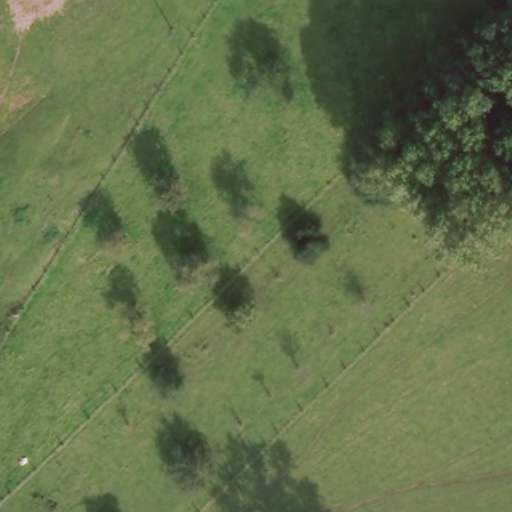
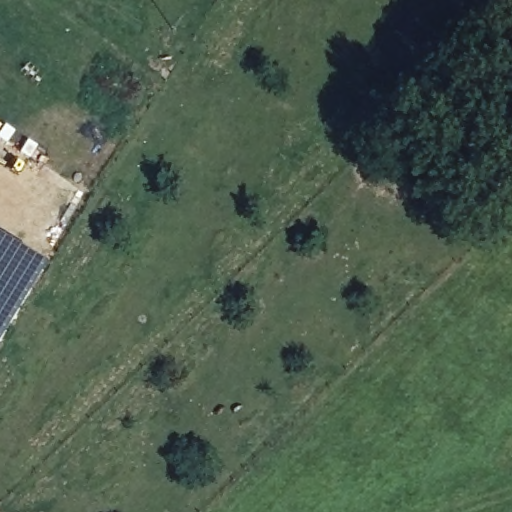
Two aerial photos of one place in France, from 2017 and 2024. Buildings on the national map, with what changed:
new [(0,339),(0,248),(40,273),(0,339)]

